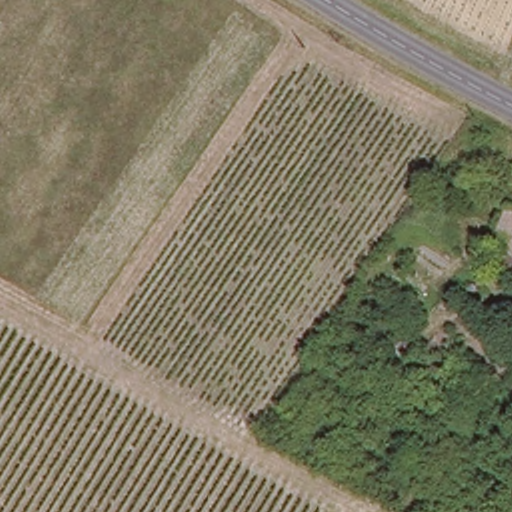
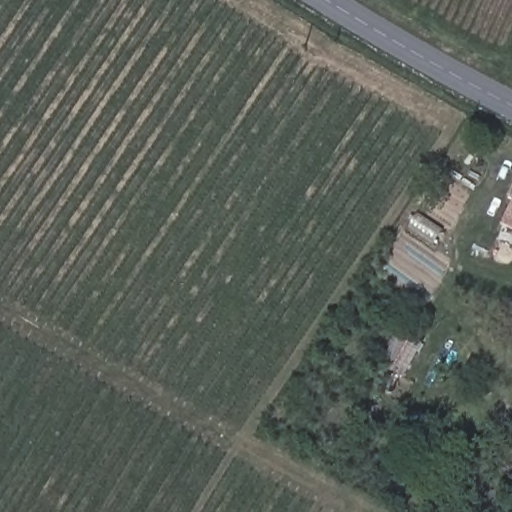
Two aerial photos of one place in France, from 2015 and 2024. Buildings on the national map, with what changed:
unchanged [(492,244),(509,208),(497,201),(512,170),(512,252),(492,244)]
unchanged [(481,265),(492,244),(512,252),(512,281),(481,265)]

